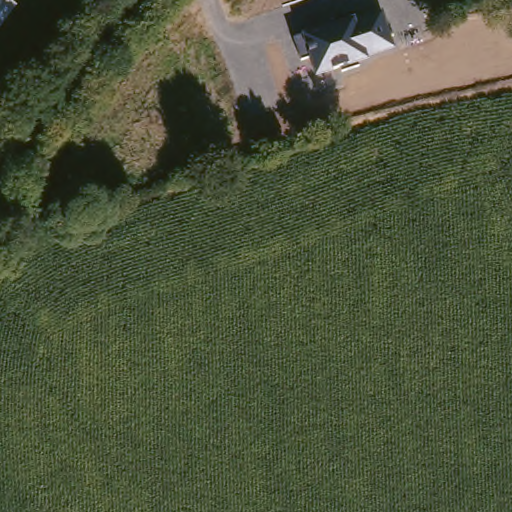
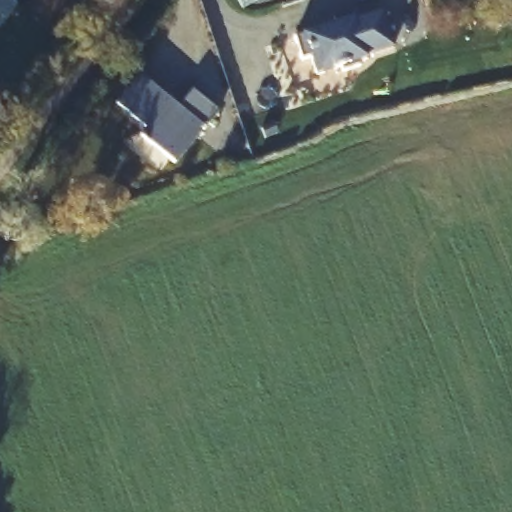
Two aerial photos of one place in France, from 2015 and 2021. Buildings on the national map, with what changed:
unchanged [(354,16),(356,19),(384,9),(397,48),(317,75),(309,56),(301,58),(294,36),(354,16)]
new [(219,110),(174,164),(140,136),(146,130),(115,105),(139,74),(179,105),(192,89),(219,110)]

